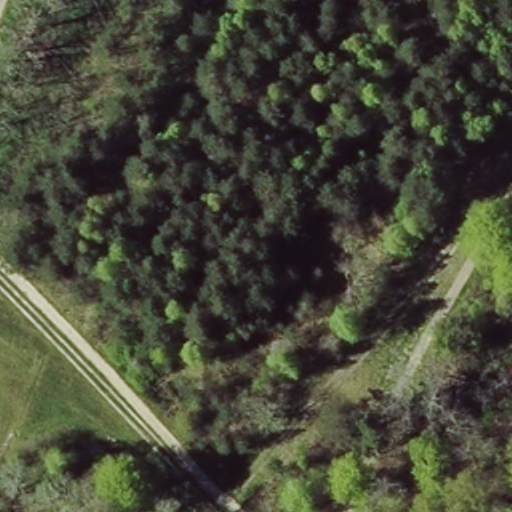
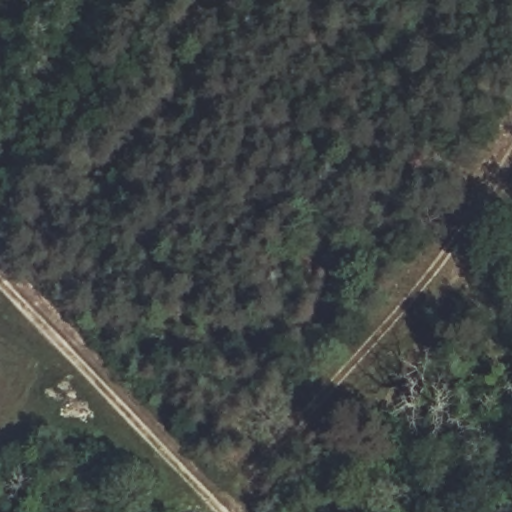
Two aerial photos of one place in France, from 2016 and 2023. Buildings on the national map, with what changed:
[]

